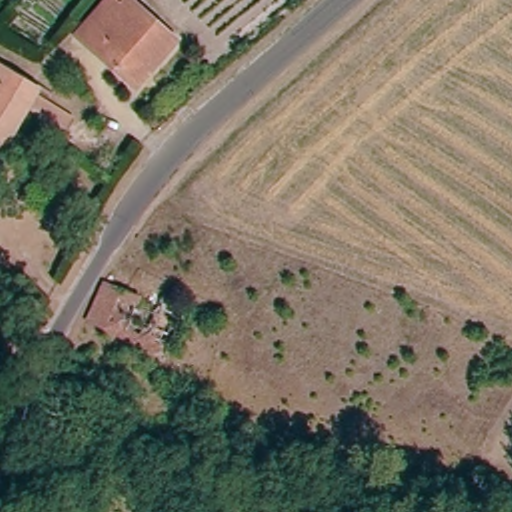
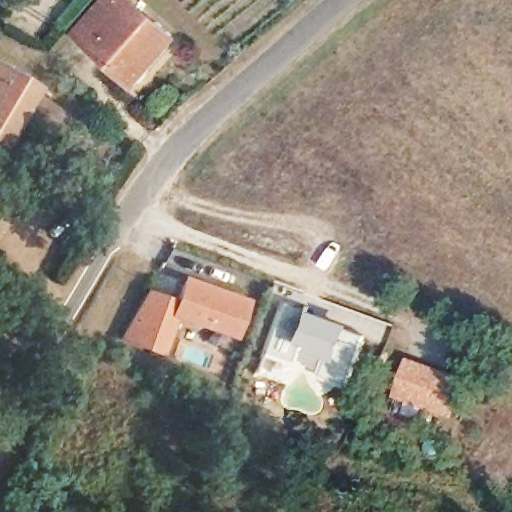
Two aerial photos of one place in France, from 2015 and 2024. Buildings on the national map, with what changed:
unchanged [(175,41),(136,86),(84,41),(110,12),(104,6),(109,0),(129,0),(175,41)]
unchanged [(0,155),(0,67),(38,90),(35,96),(72,119),(64,132),(60,139),(24,117),(0,155)]
new [(177,320),(163,356),(120,339),(148,289),(176,299),(184,277),(250,300),(236,338),(177,320)]
demolished [(104,284),(156,307),(161,296),(182,305),(159,352),(87,320),(104,284)]
new [(279,298),(296,304),(281,346),(276,344),(274,348),(280,352),(278,357),(275,356),(274,360),(257,355),(279,298)]
new [(296,304),(349,325),(332,362),(323,359),(318,372),(283,359),(287,347),(281,346),(296,304)]
new [(318,372),(323,359),(332,362),(349,325),(369,335),(349,391),(315,381),(318,372)]
new [(406,357),(474,380),(459,420),(392,397),(406,357)]

